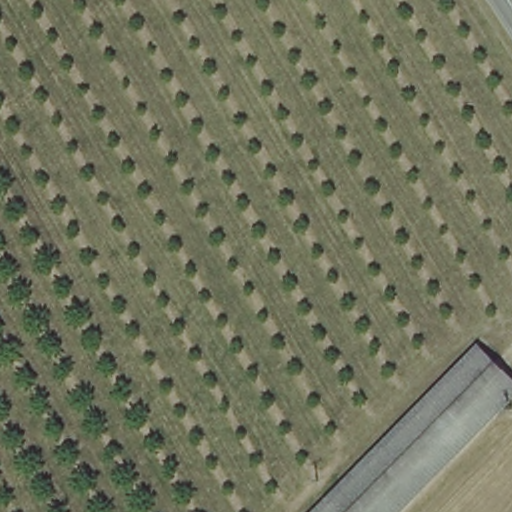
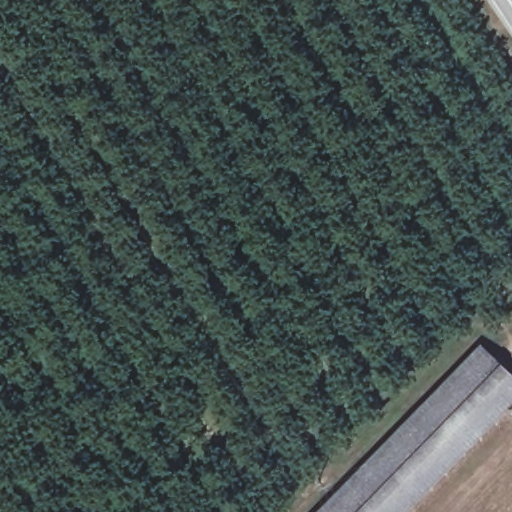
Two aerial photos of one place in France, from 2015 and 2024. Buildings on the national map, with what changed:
unchanged [(512,371),(512,405),(405,512),(312,512),(485,343),(512,371)]

